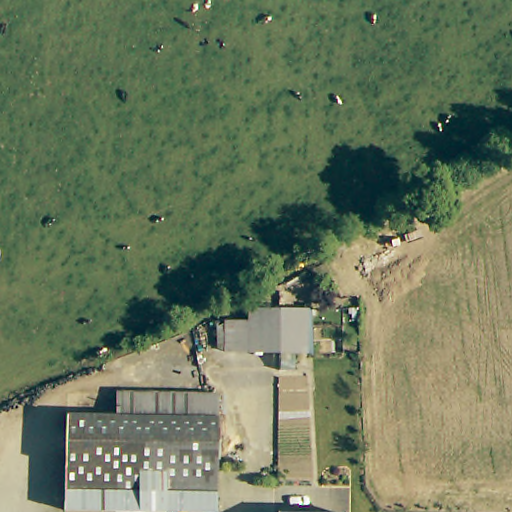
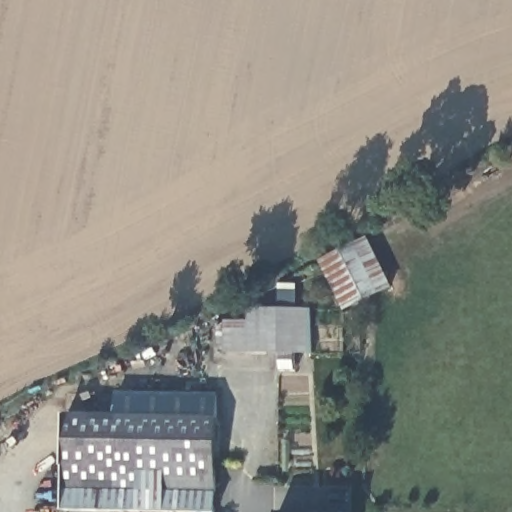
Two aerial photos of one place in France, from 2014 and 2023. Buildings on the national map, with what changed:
new [(344,312),(317,260),(368,236),(393,288),(344,312)]
unchanged [(314,334),(289,336),(289,349),(229,351),(229,321),(253,321),(254,307),(314,305),(314,334)]
unchanged [(71,510),(72,414),(118,413),(119,395),(135,395),(219,397),(218,512),(146,511),(71,510)]

